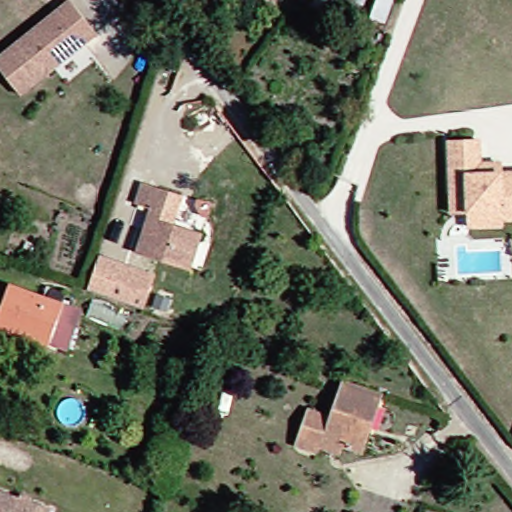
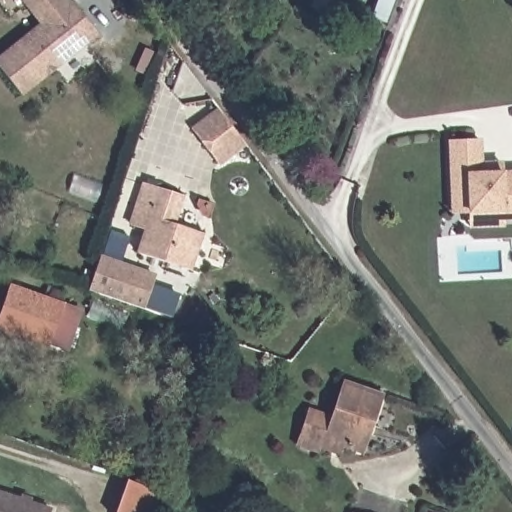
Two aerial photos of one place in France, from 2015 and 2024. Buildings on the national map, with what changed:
unchanged [(30,8),(23,0),(39,0),(30,8)]
unchanged [(327,17),(310,5),(313,0),(338,0),(327,17)]
unchanged [(0,80),(0,61),(69,6),(94,42),(17,100),(0,80)]
new [(246,147),(219,167),(190,129),(217,109),(246,147)]
unchanged [(465,217),(448,219),(447,198),(446,147),(476,144),(477,169),(487,167),(496,166),(498,177),(512,176),(512,224),(498,225),(498,231),(465,232),(465,217)]
unchanged [(199,232),(194,271),(146,266),(151,218),(138,217),(140,193),(177,197),(175,230),(199,232)]
unchanged [(127,270),(161,281),(159,290),(154,316),(100,297),(107,262),(127,270)]
unchanged [(67,344),(5,327),(15,290),(76,306),(67,344)]
unchanged [(340,450),(316,442),(323,412),(345,418),(357,385),(386,393),(369,442),(360,438),(354,456),(340,450)]
new [(159,492),(151,512),(120,512),(131,482),(159,492)]
unchanged [(0,512),(0,491),(52,508),(51,512),(0,512)]

